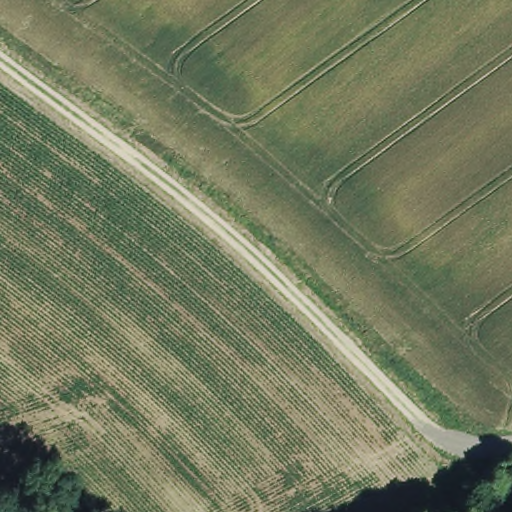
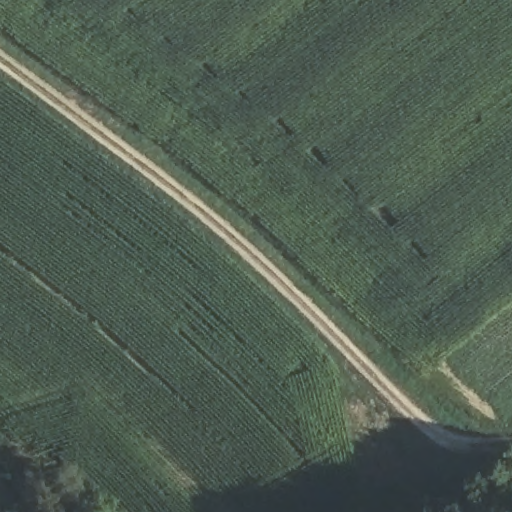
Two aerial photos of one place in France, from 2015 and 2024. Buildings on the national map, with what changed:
unchanged [(512,460),(512,468),(502,486),(458,485),(465,460),(512,460)]

